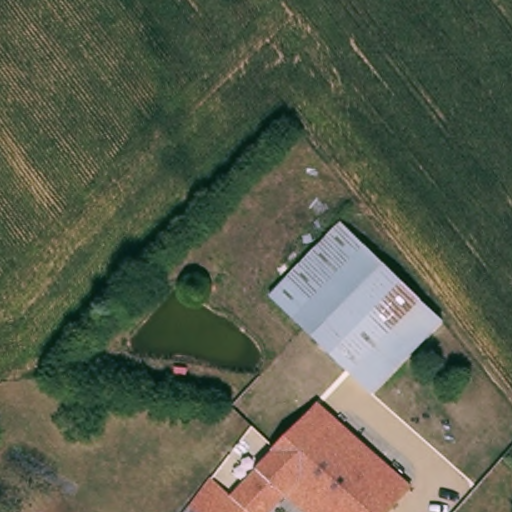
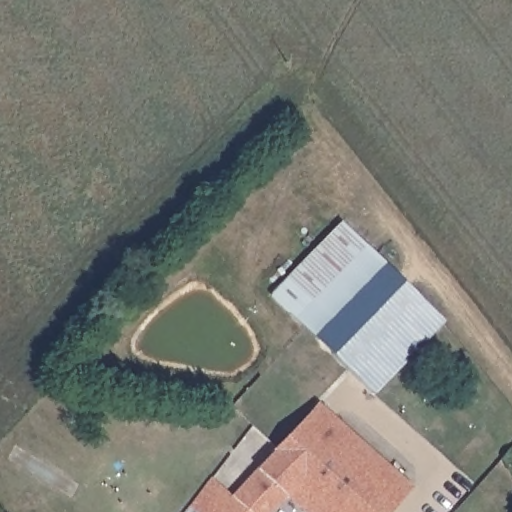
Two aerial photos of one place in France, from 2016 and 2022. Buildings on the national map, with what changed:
unchanged [(413,359),(373,400),(270,300),(343,225),(438,316),(446,325),(413,359)]
unchanged [(246,480),(273,455),(302,425),(328,397),(343,411),(357,425),(351,430),(414,490),(394,512),(311,512),(289,492),(270,512),(199,512),(225,485),(237,473),(246,480)]
unchanged [(281,402),(302,425),(273,455),(250,433),(268,415),(281,402)]

